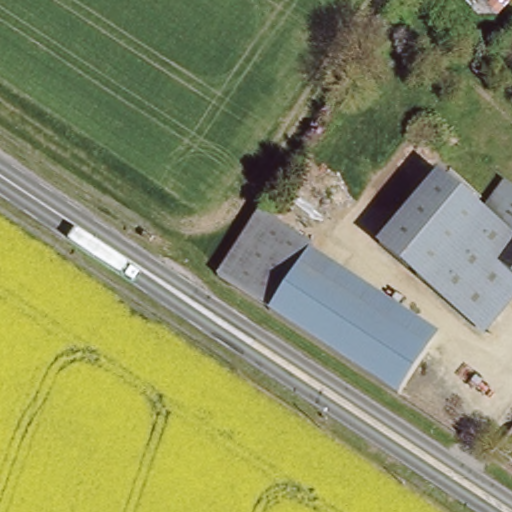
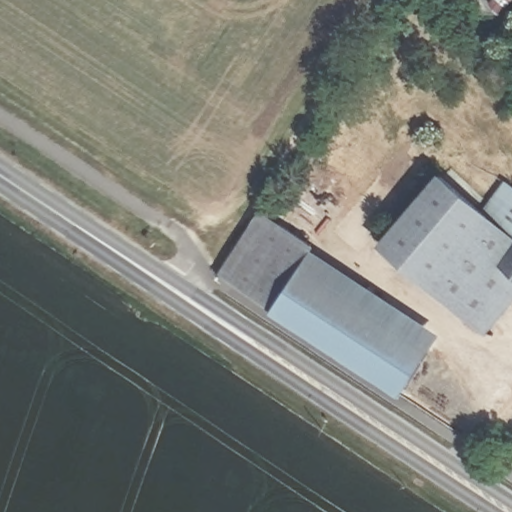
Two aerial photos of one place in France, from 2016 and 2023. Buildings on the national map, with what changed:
unchanged [(483,331),(379,241),(438,172),(481,210),(512,236),(512,242),(498,264),(512,275),(512,298),(483,331)]
unchanged [(512,186),(512,236),(481,210),(507,181),(512,186)]
unchanged [(259,217),(302,245),(300,249),(260,308),(217,281),(259,217)]
unchanged [(498,264),(512,242),(512,275),(498,264)]
unchanged [(300,249),(428,332),(388,393),(260,308),(300,249)]

